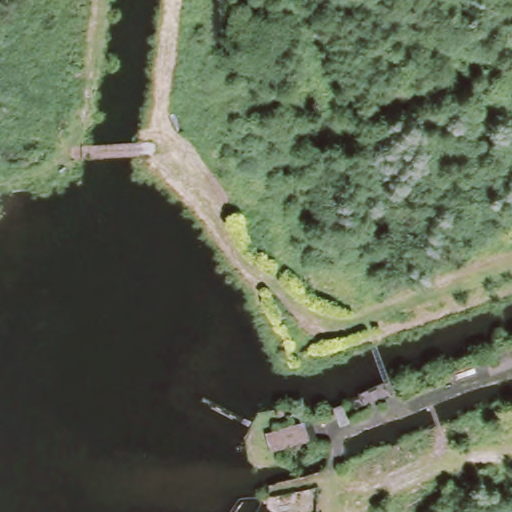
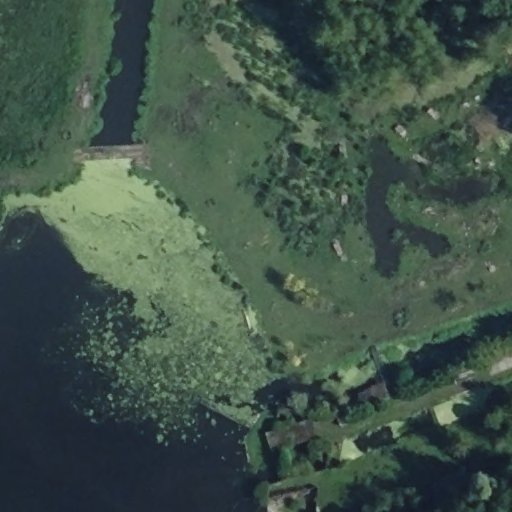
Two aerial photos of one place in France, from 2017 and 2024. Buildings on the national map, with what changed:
unchanged [(475,377),(470,362),(501,350),(507,366),(475,377)]

